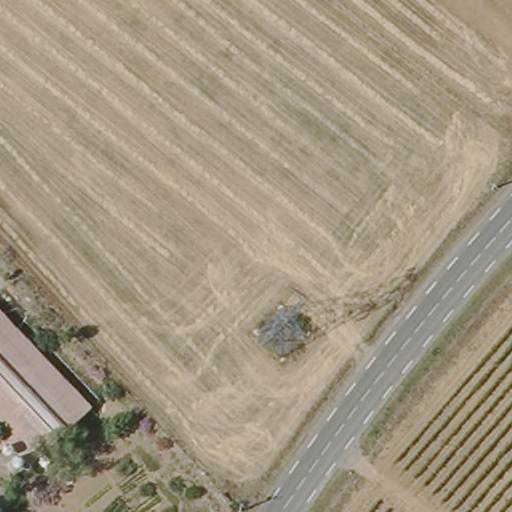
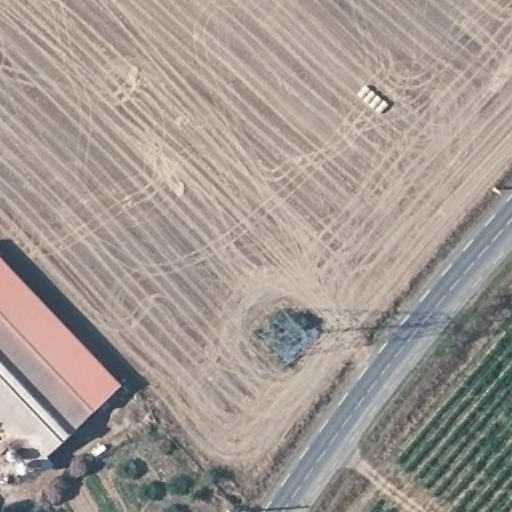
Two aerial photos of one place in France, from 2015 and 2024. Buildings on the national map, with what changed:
new [(0,307),(0,259),(117,384),(92,407),(57,370),(0,307)]
unchanged [(0,412),(0,307),(92,407),(41,457),(0,412)]
new [(26,468),(0,438),(0,412),(41,457),(26,468)]
demolished [(10,457),(0,446),(0,438),(8,430),(23,447),(10,457)]

